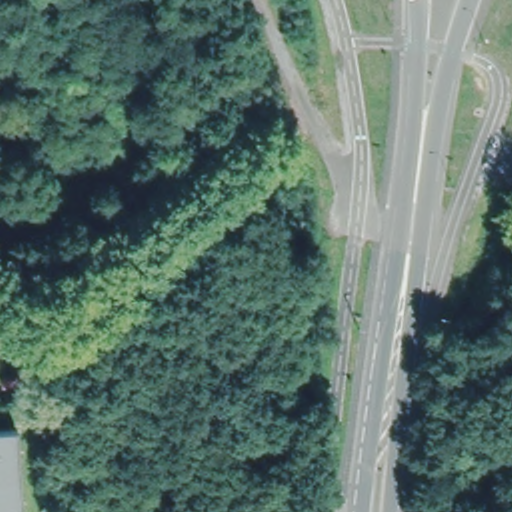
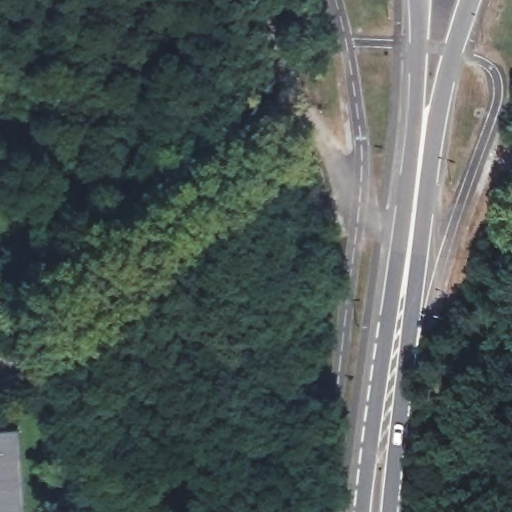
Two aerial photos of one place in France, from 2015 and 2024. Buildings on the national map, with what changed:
unchanged [(17,431),(22,512),(0,512),(0,432),(17,431)]

